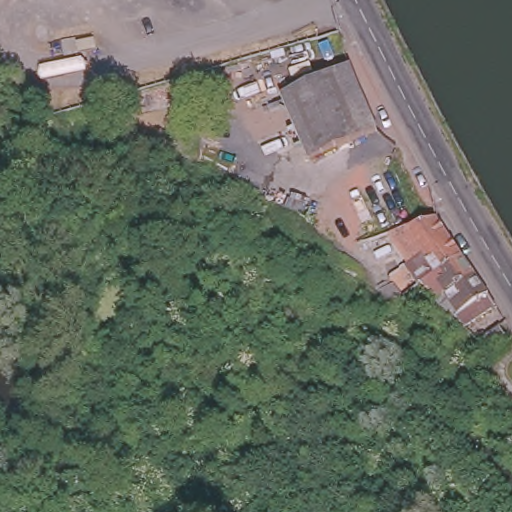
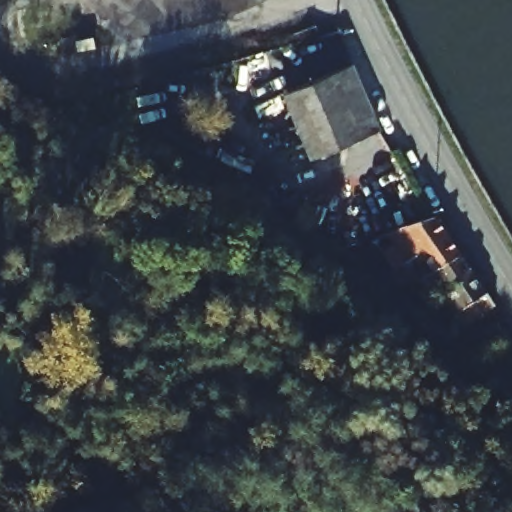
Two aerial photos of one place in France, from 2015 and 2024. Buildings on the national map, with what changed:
unchanged [(380,133),(312,159),(287,93),(352,67),(380,133)]
unchanged [(446,318),(432,297),(425,301),(412,283),(428,273),(421,263),(416,266),(411,259),(397,238),(370,246),(366,235),(430,215),(444,237),(455,255),(468,274),(481,295),(487,304),(467,318),(456,324),(450,315),(446,318)]
unchanged [(497,341),(480,353),(470,339),(465,330),(475,324),(492,312),(497,320),(491,325),(500,339),(497,341)]

